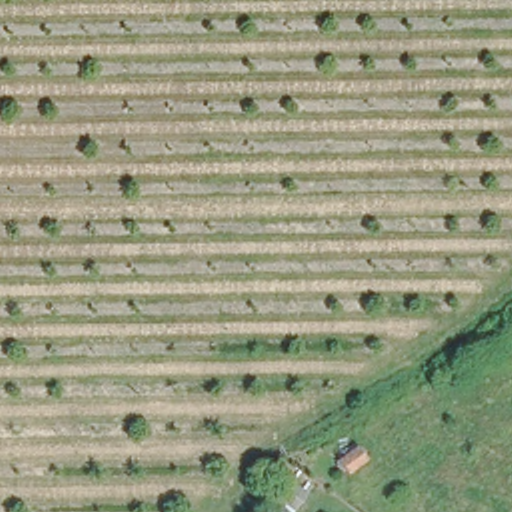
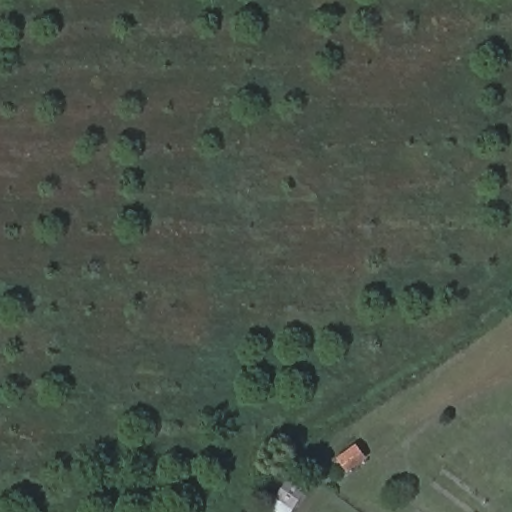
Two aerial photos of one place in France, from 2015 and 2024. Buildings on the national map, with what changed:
unchanged [(289,503),(300,490),(310,498),(300,511),(289,503)]

